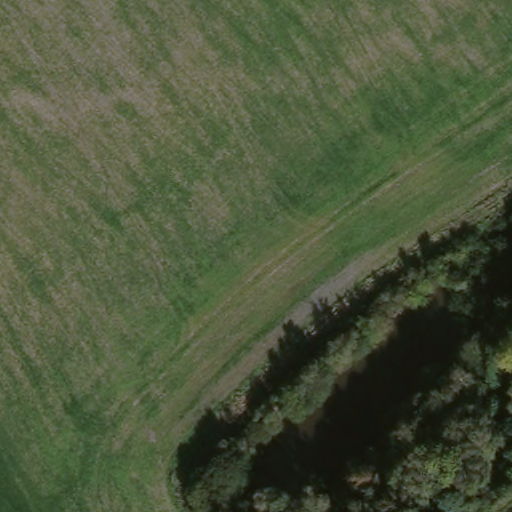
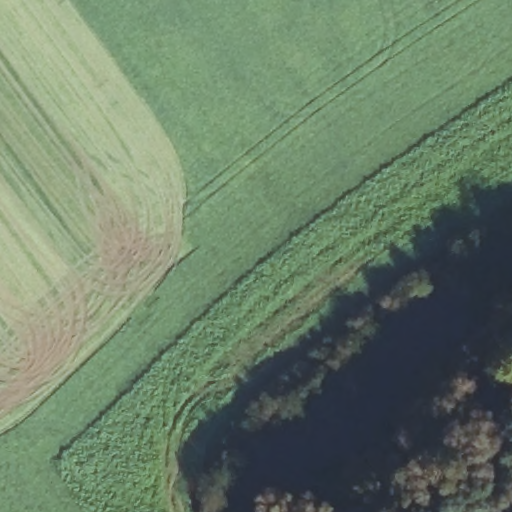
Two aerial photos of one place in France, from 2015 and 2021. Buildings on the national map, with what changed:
[]

